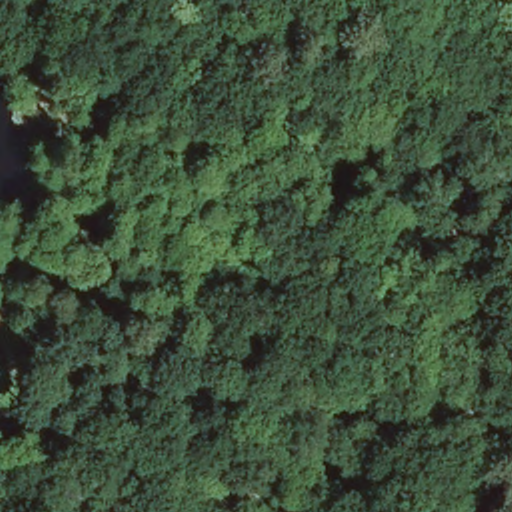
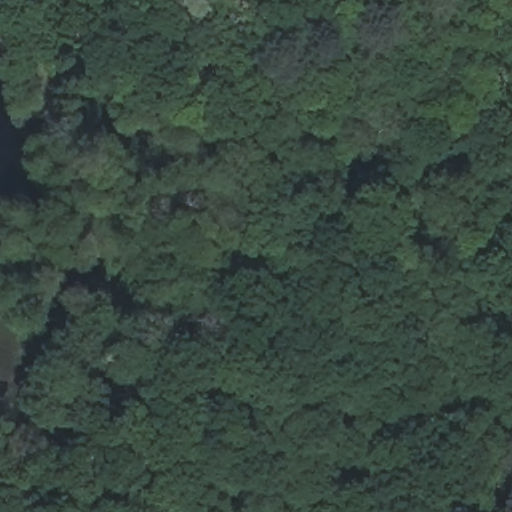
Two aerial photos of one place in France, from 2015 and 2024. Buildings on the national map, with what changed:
[]

